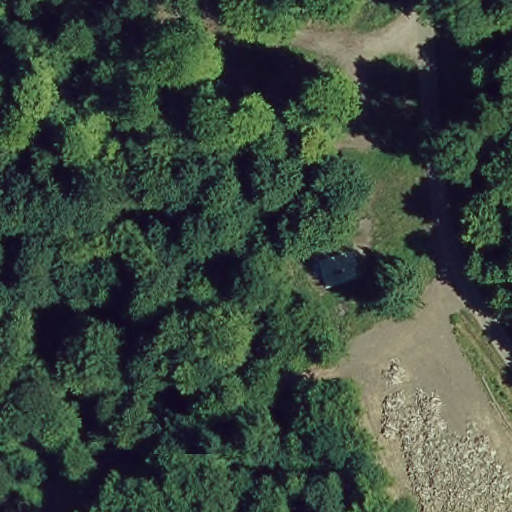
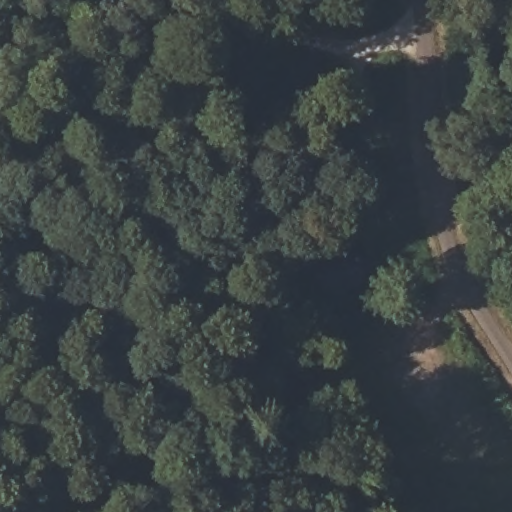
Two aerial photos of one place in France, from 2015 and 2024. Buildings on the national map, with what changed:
unchanged [(309,259),(356,244),(366,280),(319,295),(309,259)]

